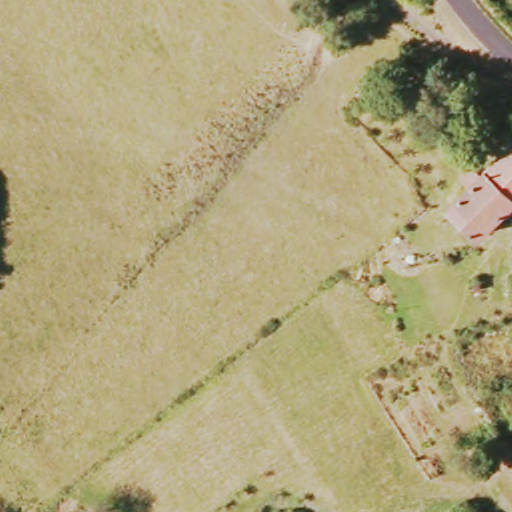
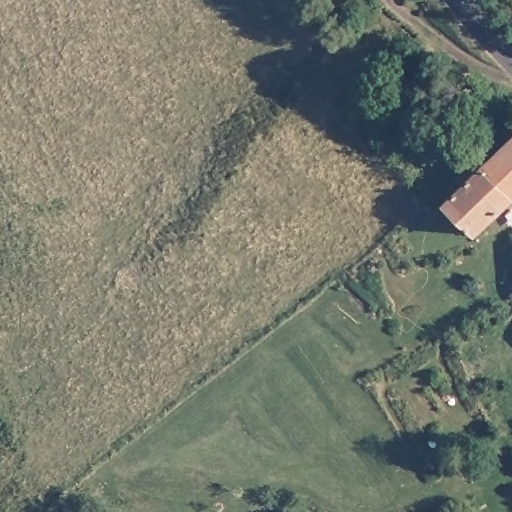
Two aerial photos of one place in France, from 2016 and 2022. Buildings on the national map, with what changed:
unchanged [(512,147),(512,201),(482,229),(456,197),(512,147)]

